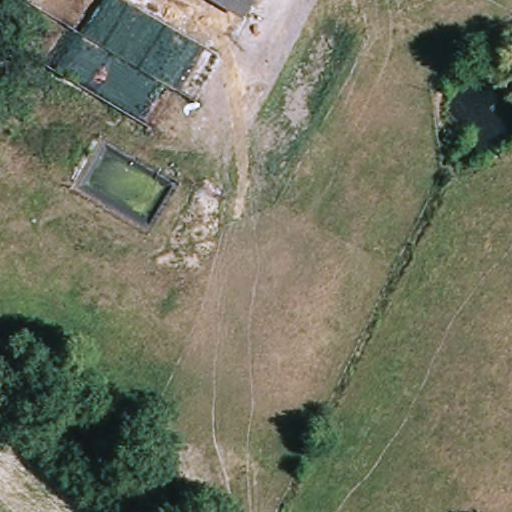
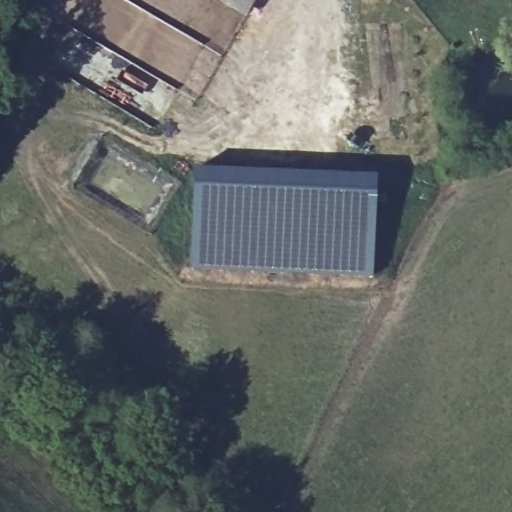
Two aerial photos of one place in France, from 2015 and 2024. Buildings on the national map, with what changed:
unchanged [(219,0),(256,0),(247,16),(219,0)]
new [(194,170),(374,177),(370,277),(190,270),(194,170)]

